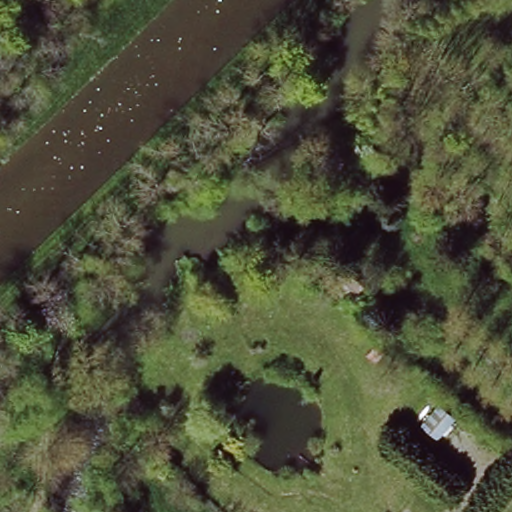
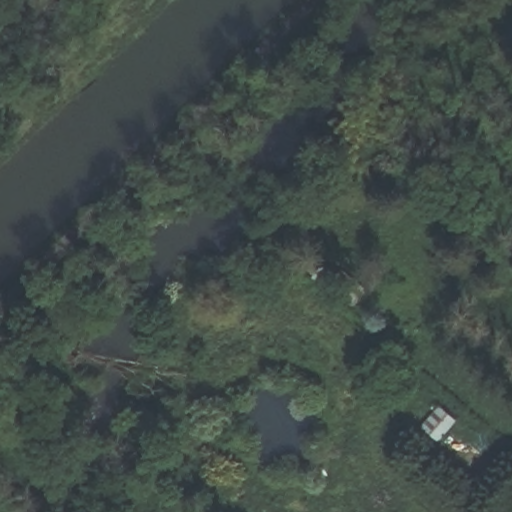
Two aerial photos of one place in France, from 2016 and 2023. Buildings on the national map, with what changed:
unchanged [(318,263),(335,276),(327,284),(310,270),(318,263)]
unchanged [(348,267),(370,287),(362,295),(340,275),(348,267)]
unchanged [(456,423),(437,445),(420,430),(438,408),(456,423)]

